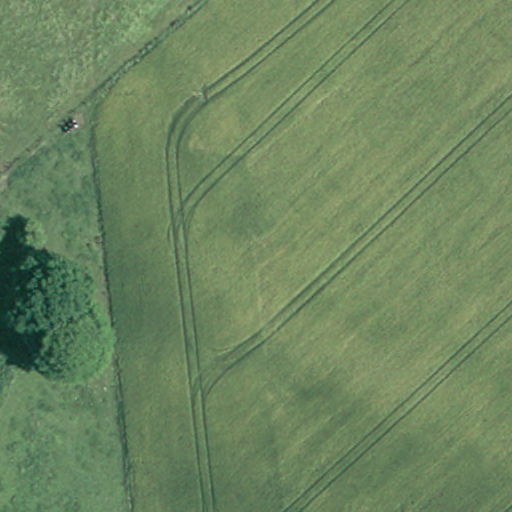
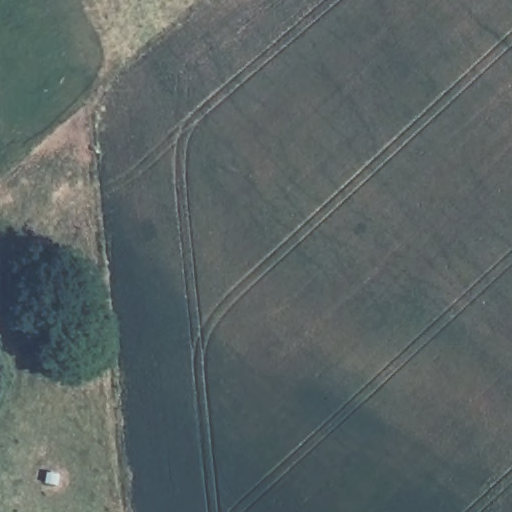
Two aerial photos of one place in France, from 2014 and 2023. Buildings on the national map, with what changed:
unchanged [(88,327),(103,321),(119,353),(105,361),(88,327)]

